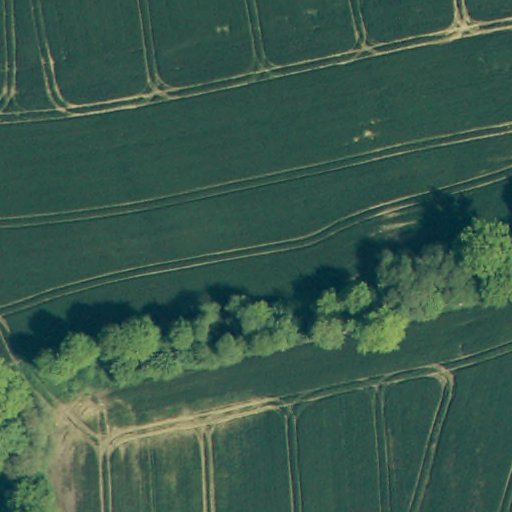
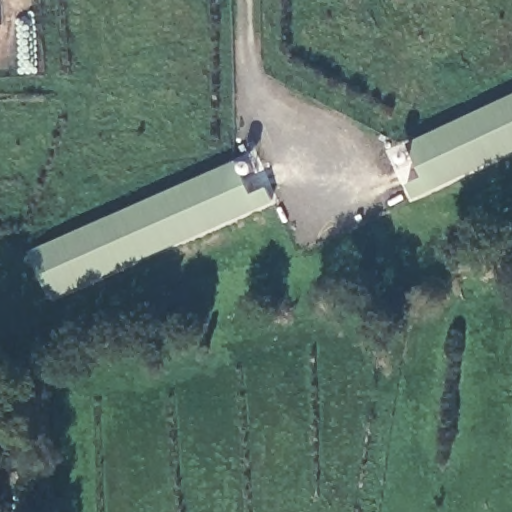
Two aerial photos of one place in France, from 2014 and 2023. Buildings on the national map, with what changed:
new [(407,143),(512,95),(512,155),(413,201),(405,185),(420,177),(407,143)]
new [(234,159),(250,194),(267,187),(274,202),(49,301),(28,251),(234,159)]

